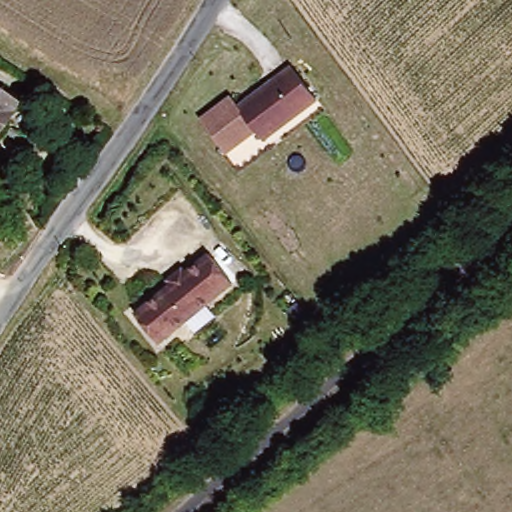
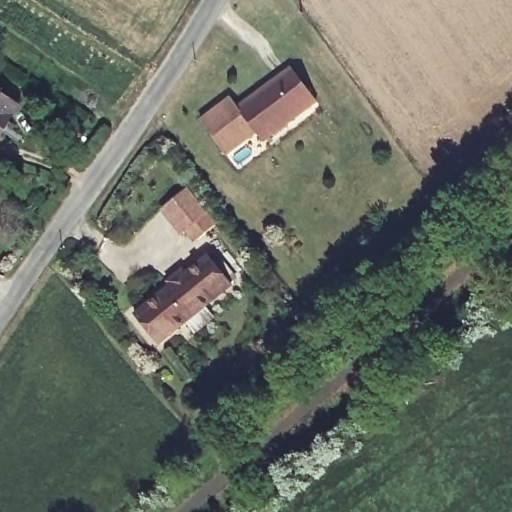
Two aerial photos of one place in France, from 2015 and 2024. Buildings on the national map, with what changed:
unchanged [(254,135),(224,159),(198,126),(228,102),(236,112),(288,70),(314,103),(282,129),(261,145),(254,135)]
unchanged [(0,125),(0,92),(17,106),(0,125)]
new [(217,224),(193,243),(184,232),(181,236),(159,209),(186,187),(217,224)]
unchanged [(188,268),(211,250),(234,279),(161,338),(137,309),(172,280),(168,275),(178,268),(184,263),(188,268)]

